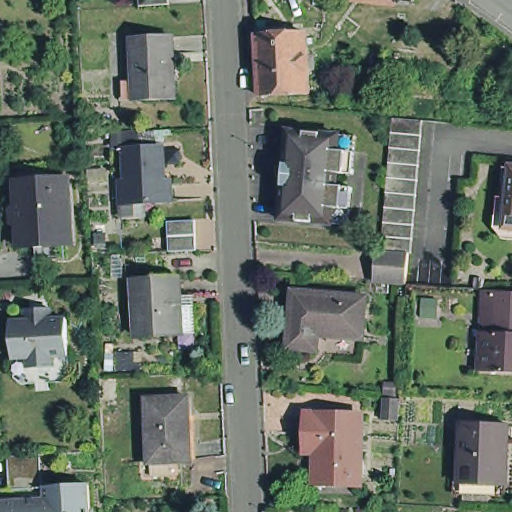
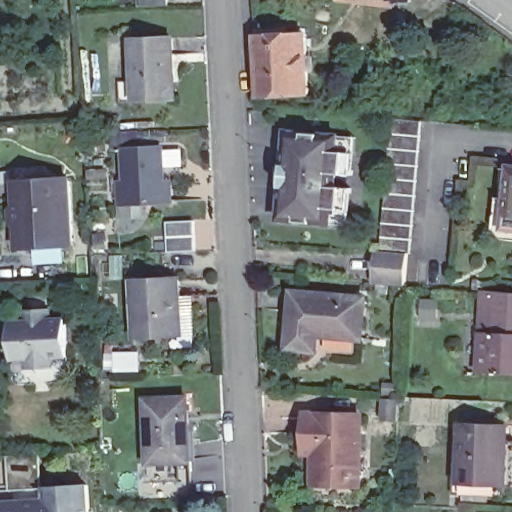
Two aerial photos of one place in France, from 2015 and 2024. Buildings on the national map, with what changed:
unchanged [(395,2),(379,0),(410,0),(410,4),(395,2)]
unchanged [(315,89),(265,92),(261,32),(260,26),(272,25),(286,24),(286,30),(313,29),(315,89)]
unchanged [(176,90),(136,92),(133,31),(171,29),(176,90)]
unchanged [(414,277),(378,276),(397,111),(431,116),(414,277)]
unchanged [(50,115),(51,132),(40,133),(39,116),(50,115)]
unchanged [(349,222),(331,221),(280,216),(288,127),(340,132),(357,134),(353,172),(345,171),(337,170),(336,183),(344,184),(352,185),(349,222)]
unchanged [(125,209),(125,195),(122,195),(121,172),(128,172),(126,141),(164,139),(165,171),(172,171),(173,193),(145,194),(146,207),(125,209)]
unchanged [(40,252),(37,240),(20,241),(16,175),(15,162),(47,161),(48,169),(53,172),(71,171),(75,237),(64,238),(65,252),(40,252)]
unchanged [(501,231),(512,163),(512,233),(501,231)]
unchanged [(195,216),(197,246),(170,247),(168,217),(195,216)]
unchanged [(106,242),(95,242),(95,230),(106,229),(106,242)]
unchanged [(187,328),(142,332),(140,276),(184,275),(187,328)]
unchanged [(478,365),(481,324),(484,281),(496,282),(512,283),(512,367),(478,365)]
unchanged [(368,329),(324,325),(322,341),(295,338),(298,283),(371,288),(368,329)]
unchanged [(12,305),(26,303),(25,293),(51,292),(52,302),(66,301),(69,338),(55,339),(55,348),(30,351),(28,341),(15,342),(12,305)]
unchanged [(28,341),(30,351),(55,348),(55,339),(69,338),(70,357),(65,363),(22,367),(16,361),(15,342),(28,341)]
unchanged [(191,455),(150,457),(148,393),(188,392),(191,455)]
unchanged [(396,418),(381,417),(383,394),(397,395),(396,418)]
unchanged [(365,407),(364,475),(321,473),(321,443),(310,443),(310,430),(311,406),(365,407)]
unchanged [(457,486),(457,469),(462,469),(465,416),(511,418),(508,472),(508,477),(507,477),(507,488),(457,486)]
unchanged [(0,491),(19,490),(18,478),(17,479),(17,476),(16,445),(44,443),(46,477),(94,474),(96,512),(0,512),(0,491)]

